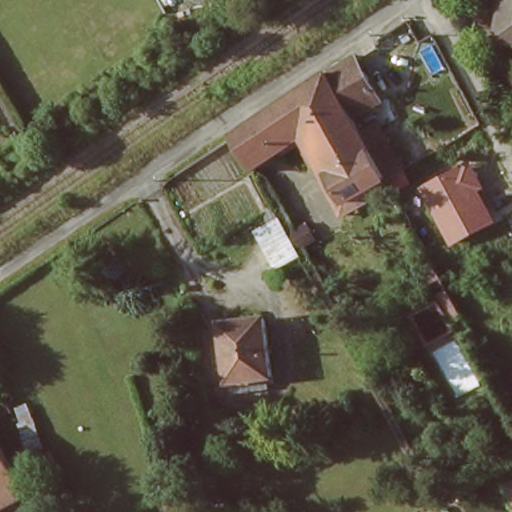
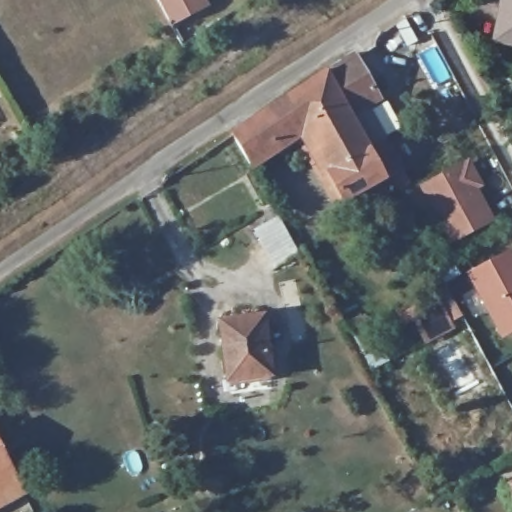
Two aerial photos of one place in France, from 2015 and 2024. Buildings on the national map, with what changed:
unchanged [(157,0),(208,0),(213,8),(173,28),(157,0)]
unchanged [(500,0),(512,0),(512,42),(494,40),(500,0)]
unchanged [(376,109),(347,126),(321,80),(335,70),(348,62),(376,109)]
unchanged [(395,164),(375,177),(381,187),(341,210),(302,135),(247,172),(230,143),(243,134),(281,107),(315,85),(321,80),(347,126),(358,145),(377,134),(395,164)]
unchanged [(451,247),(420,188),(470,161),(485,187),(479,190),(495,221),(451,247)]
unchanged [(299,255),(275,268),(254,229),(277,215),(299,255)]
new [(512,250),(512,335),(502,340),(466,274),(512,250)]
unchanged [(405,314),(434,298),(413,267),(432,254),(467,315),(452,321),(456,333),(423,346),(405,314)]
unchanged [(232,391),(230,379),(229,379),(228,366),(222,321),(265,314),(272,373),(267,374),(269,386),(232,391)]
unchanged [(2,447),(14,469),(0,475),(0,443),(2,447)]
unchanged [(14,469),(29,496),(0,509),(0,475),(14,469)]
unchanged [(163,507),(164,512),(152,512),(163,507)]

